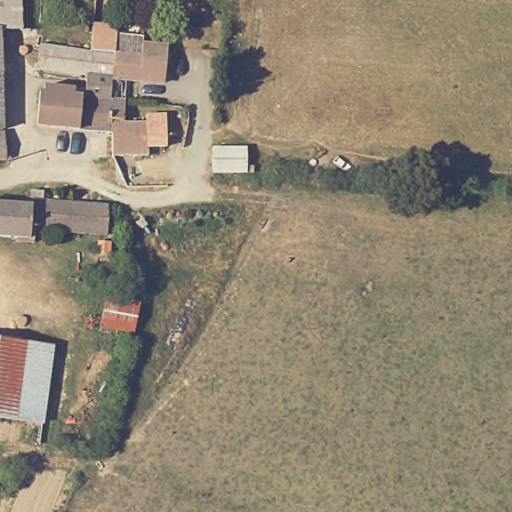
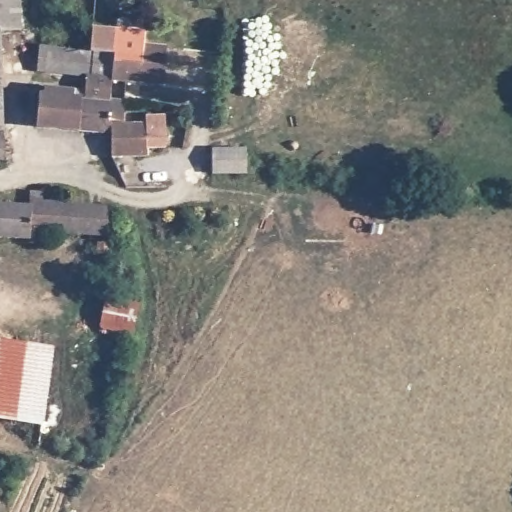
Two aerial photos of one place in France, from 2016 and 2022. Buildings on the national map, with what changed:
unchanged [(26,30),(4,31),(0,31),(0,0),(25,0),(26,30)]
unchanged [(76,77),(67,76),(37,72),(32,72),(35,47),(70,50),(85,52),(86,27),(87,27),(110,29),(110,36),(136,38),(136,46),(161,47),(158,84),(106,80),(86,77),(76,77)]
unchanged [(6,109),(0,109),(0,31),(4,31),(6,109)]
unchanged [(76,97),(80,98),(81,82),(106,85),(105,100),(117,101),(116,121),(106,120),(106,124),(106,133),(74,130),(76,97)]
unchanged [(74,130),(31,126),(35,94),(76,97),(74,130)]
unchanged [(7,131),(0,131),(0,109),(6,109),(7,131)]
unchanged [(151,134),(153,136),(155,139),(155,142),(153,146),(150,147),(146,148),(143,147),(143,156),(114,156),(106,157),(106,133),(106,124),(151,124),(151,134)]
unchanged [(11,161),(0,163),(0,135),(8,134),(11,161)]
unchanged [(29,201),(29,192),(43,190),(43,202),(106,206),(106,237),(30,232),(29,240),(0,238),(0,204),(29,206),(29,201)]
unchanged [(96,242),(109,244),(109,256),(96,256),(96,242)]
unchanged [(134,332),(100,327),(106,298),(139,303),(139,305),(134,332)]
unchanged [(43,423),(0,418),(0,340),(53,347),(43,423)]

